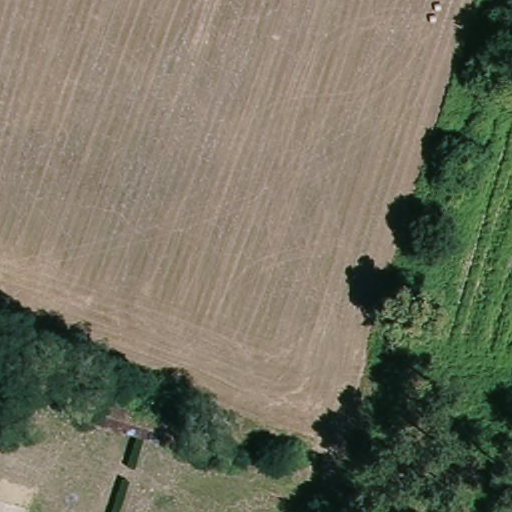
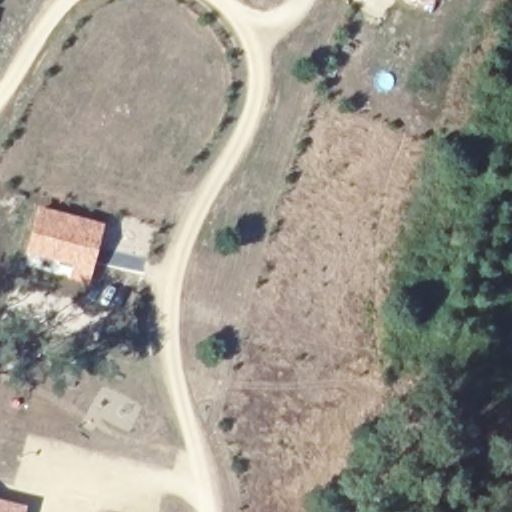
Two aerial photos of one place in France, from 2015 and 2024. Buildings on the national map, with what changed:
new [(430,7),(412,0),(433,0),(430,7)]
new [(38,205),(106,224),(88,289),(66,281),(71,269),(24,255),(38,205)]
demolished [(135,427),(94,417),(97,402),(138,412),(135,427)]
new [(21,512),(0,512),(0,496),(23,501),(21,512)]

